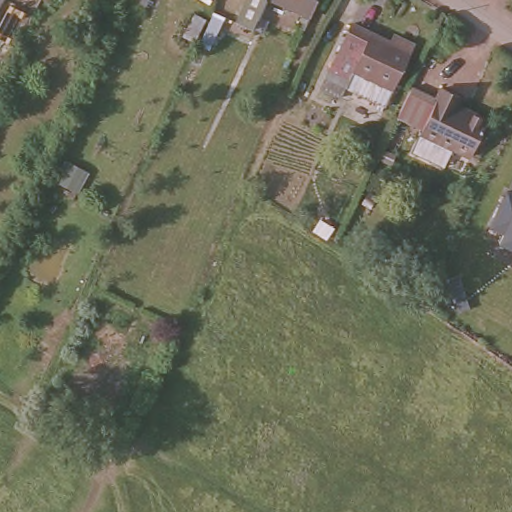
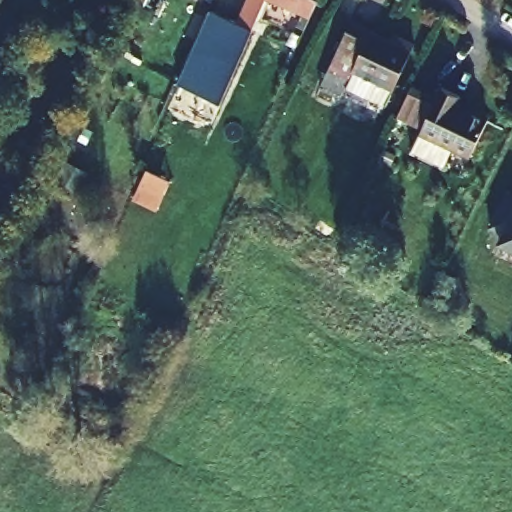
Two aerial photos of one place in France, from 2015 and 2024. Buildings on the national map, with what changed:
unchanged [(0,0),(2,0),(0,5),(0,0)]
unchanged [(254,30),(238,22),(248,0),(267,0),(259,18),(254,30)]
unchanged [(275,0),(318,0),(311,16),(275,0)]
new [(238,22),(254,30),(221,102),(178,83),(211,10),(238,22)]
unchanged [(400,38),(414,45),(384,106),(345,87),(341,97),(320,87),(351,22),(397,45),(400,38)]
unchanged [(417,80),(418,80),(442,92),(448,81),(466,90),(461,100),(493,115),(476,150),(458,142),(451,158),(419,142),(428,122),(403,110),(417,80)]
unchanged [(512,192),(512,248),(498,241),(502,232),(489,225),(507,189),(512,192)]

